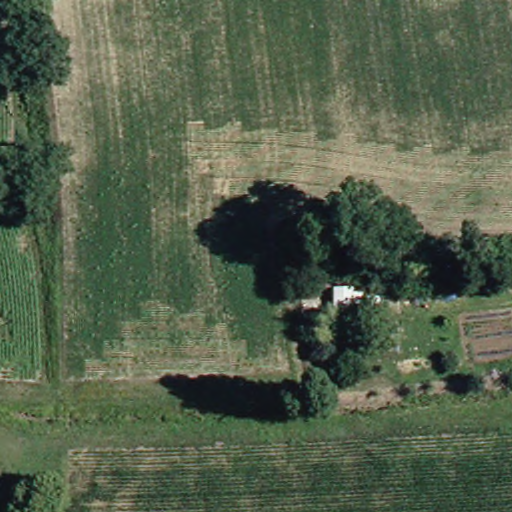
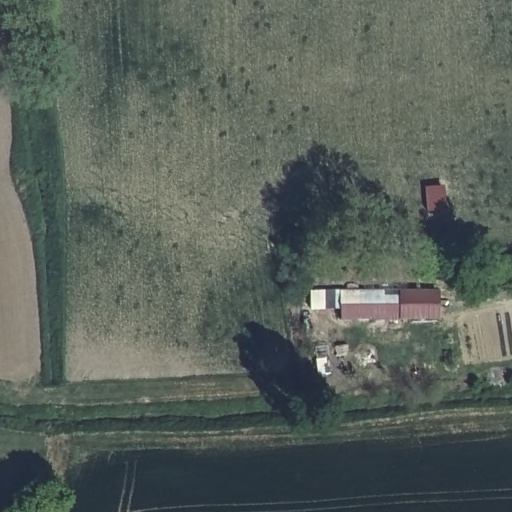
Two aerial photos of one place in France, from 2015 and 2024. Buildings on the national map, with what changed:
new [(440,291),(438,320),(342,320),(342,292),(440,291)]

